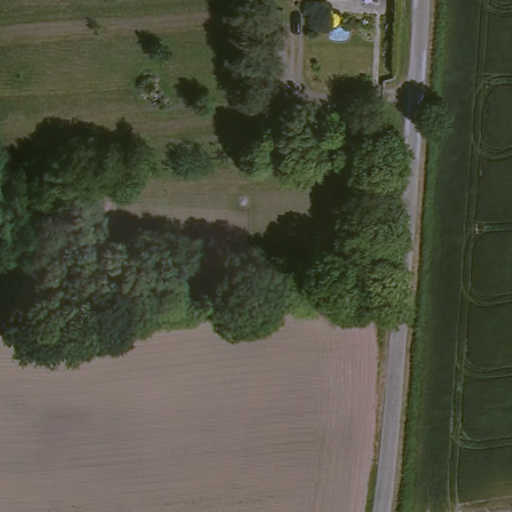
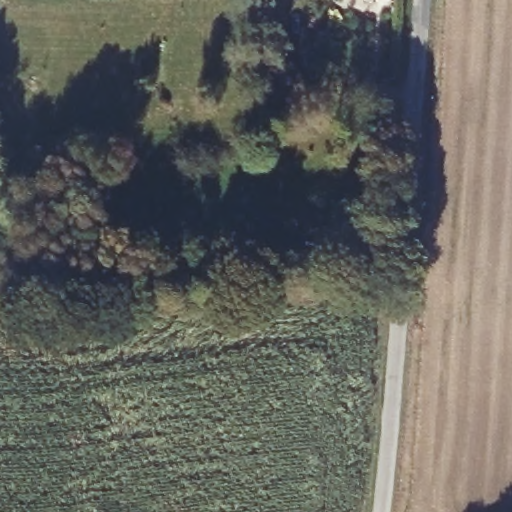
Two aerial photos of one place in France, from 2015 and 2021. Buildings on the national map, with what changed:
[]

